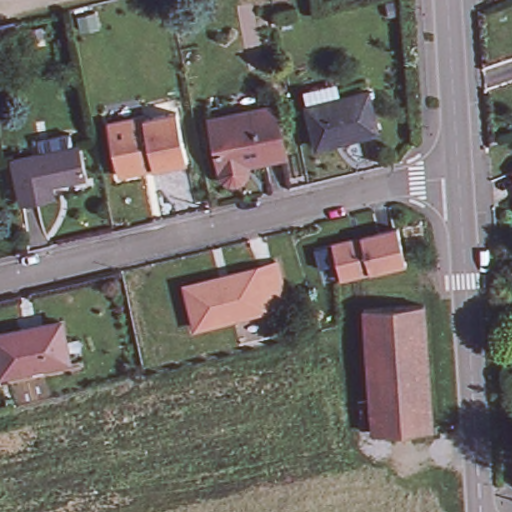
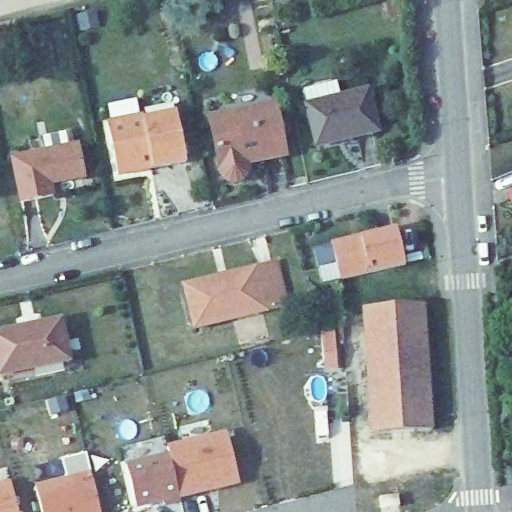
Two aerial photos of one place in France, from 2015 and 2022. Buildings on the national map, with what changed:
unchanged [(306,97),(334,90),(338,102),(370,95),(381,135),(320,151),(306,97)]
unchanged [(212,106),(237,102),(238,112),(278,106),(287,154),(250,161),(250,163),(250,165),(250,168),(250,170),(249,172),(247,174),(246,176),(244,177),(242,178),(240,179),(238,179),(237,179),(235,179),(232,179),(230,177),(228,176),(227,175),(225,172),(224,170),(223,168),(223,165),(212,106)]
unchanged [(143,120),(176,114),(187,162),(153,170),(143,120)]
unchanged [(118,178),(107,126),(142,118),(143,120),(153,170),(118,178)]
unchanged [(13,160),(78,146),(86,177),(52,186),(53,197),(22,204),(13,160)]
unchanged [(393,230),(405,263),(341,283),(332,251),(337,249),(393,230)]
unchanged [(187,285),(279,263),(288,305),(195,328),(187,285)]
unchanged [(362,311),(422,308),(434,432),(373,436),(362,311)]
unchanged [(0,367),(0,325),(61,313),(70,359),(2,373),(0,367)]
new [(125,466),(168,455),(167,447),(227,432),(241,485),(180,499),(182,503),(165,509),(163,503),(135,510),(125,466)]
new [(90,472),(100,512),(42,512),(35,485),(90,472)]
new [(12,482),(18,512),(0,512),(0,485),(12,482)]

